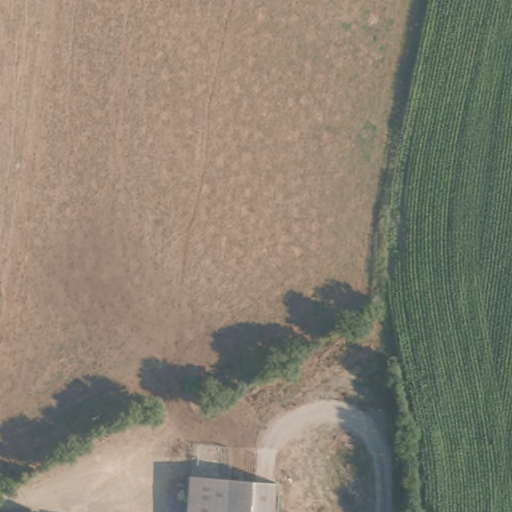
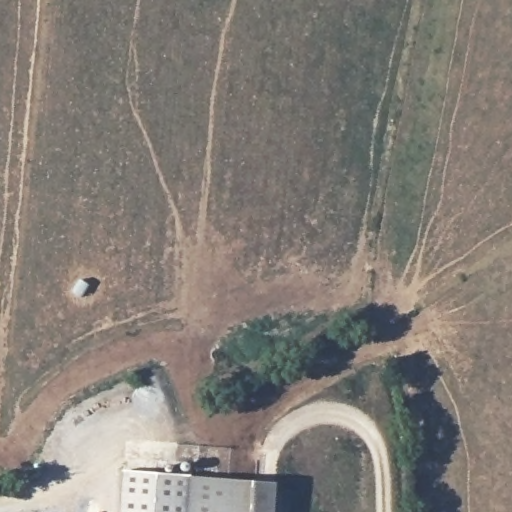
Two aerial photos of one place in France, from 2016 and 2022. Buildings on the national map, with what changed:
new [(190,474),(187,512),(120,512),(124,469),(190,474)]
unchanged [(281,477),(279,512),(187,512),(191,471),(281,477)]

